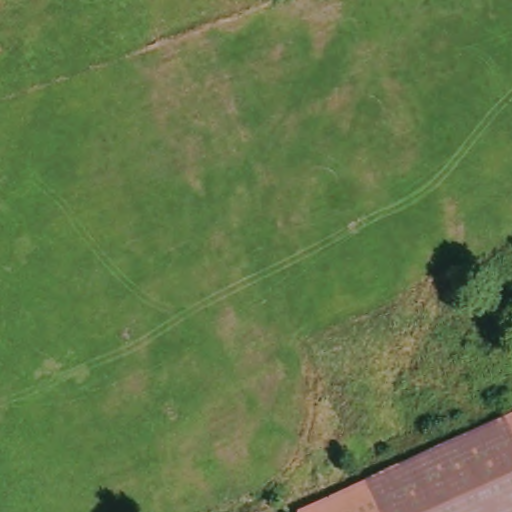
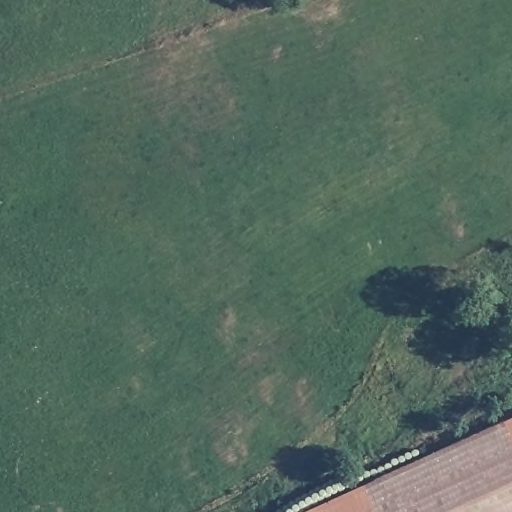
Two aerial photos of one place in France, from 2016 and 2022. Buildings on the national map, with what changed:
unchanged [(384,512),(374,488),(512,426),(512,512),(384,512)]
unchanged [(320,512),(374,488),(384,512),(320,512)]

